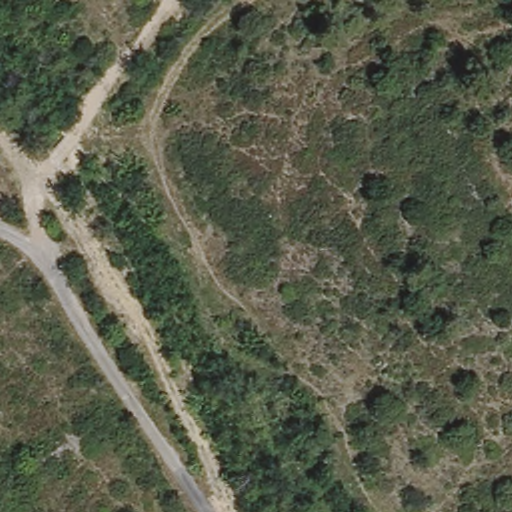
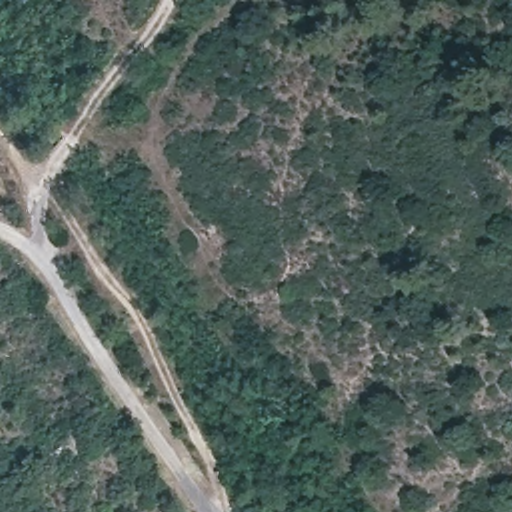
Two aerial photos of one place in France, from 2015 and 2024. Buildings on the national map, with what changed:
[]

